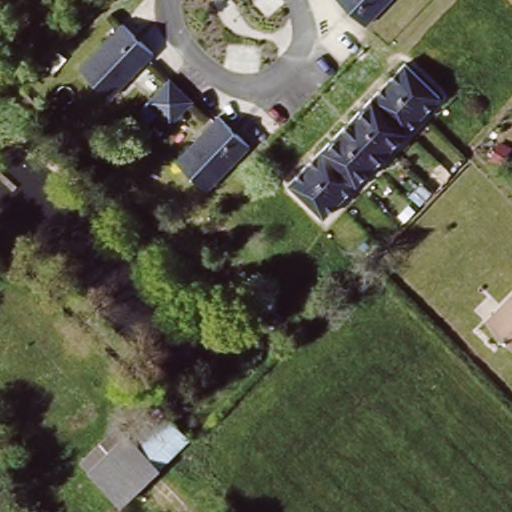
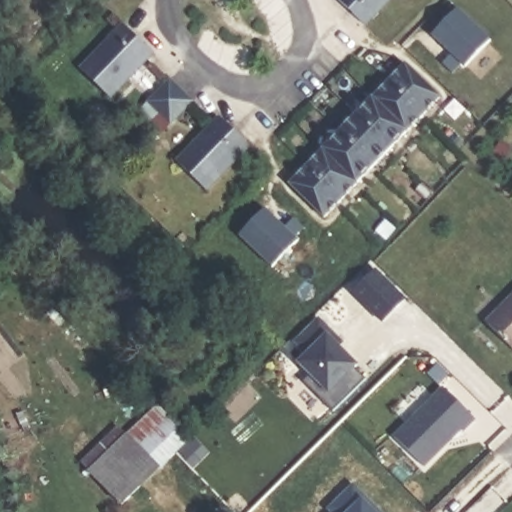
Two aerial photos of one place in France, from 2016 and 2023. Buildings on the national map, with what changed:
unchanged [(366,27),(338,0),(392,0),(366,27)]
new [(465,66),(461,63),(452,71),(442,62),(451,53),(431,35),(457,7),(490,39),(465,66)]
unchanged [(110,100),(80,72),(122,27),(134,38),(144,48),(152,56),(110,100)]
unchanged [(289,186),(400,68),(436,102),(325,220),(289,186)]
unchanged [(159,117),(147,106),(170,82),(181,94),(192,104),(169,127),(159,117)]
unchanged [(209,194),(177,163),(219,120),(251,150),(209,194)]
new [(295,236),(298,240),(272,267),(239,234),(265,207),(284,224),(292,216),(303,227),(295,236)]
new [(374,268),(406,298),(381,321),(352,291),(374,268)]
unchanged [(490,323),(512,300),(512,344),(490,323)]
new [(339,343),(358,365),(355,368),(365,378),(331,410),(302,380),(307,373),(297,362),(305,353),(292,341),(317,315),(345,341),(339,343)]
new [(463,431),(461,429),(425,467),(392,434),(442,386),(474,418),(463,431)]
unchanged [(89,470),(147,405),(186,444),(124,506),(89,470)]

